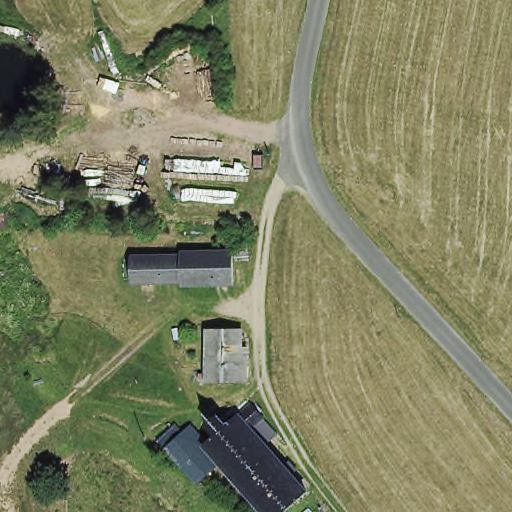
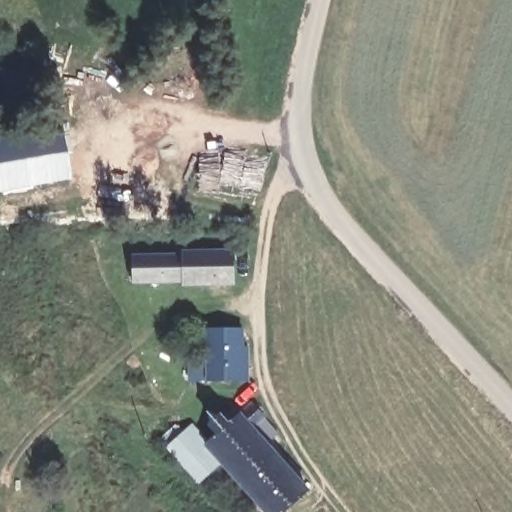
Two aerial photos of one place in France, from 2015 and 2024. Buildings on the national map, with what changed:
new [(62,129),(71,180),(0,192),(0,139),(62,129)]
unchanged [(220,252),(223,226),(253,227),(250,267),(237,268),(235,290),(135,293),(132,261),(220,252)]
unchanged [(198,378),(206,379),(207,331),(243,331),(243,353),(250,353),(250,385),(243,385),(206,385),(198,385),(198,378)]
unchanged [(250,505),(215,467),(200,451),(212,439),(205,431),(215,422),(222,431),(233,420),(247,408),(260,423),(271,438),(261,448),(303,492),(283,512),(257,512),(256,511),(255,512),(246,512),(245,511),(250,505)]
unchanged [(158,452),(181,431),(200,451),(215,467),(192,487),(158,452)]

